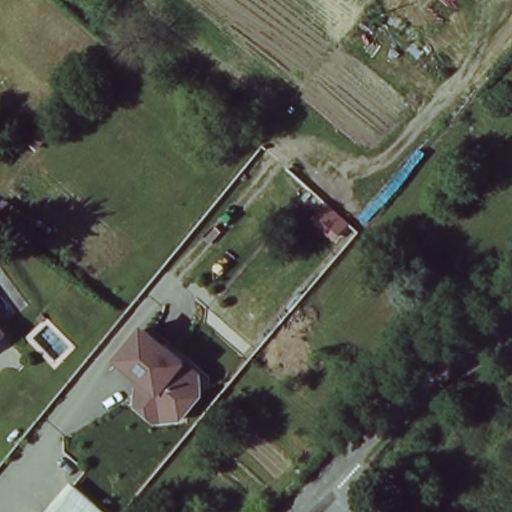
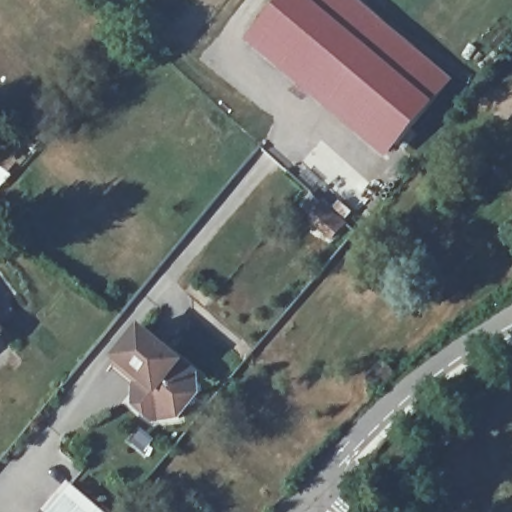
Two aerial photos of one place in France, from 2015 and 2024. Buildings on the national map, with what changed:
new [(312,0),(362,41),(381,23),(452,84),(387,160),(247,42),(282,0),(312,0)]
new [(326,205),(346,223),(333,237),(312,219),(326,205)]
unchanged [(141,387),(147,379),(122,358),(146,329),(199,372),(200,380),(188,394),(183,395),(186,418),(158,421),(151,416),(141,407),(141,387)]
unchanged [(2,336),(0,337),(0,334),(2,336)]
unchanged [(77,494),(99,512),(61,512),(77,494)]
unchanged [(41,511),(41,512),(40,512),(41,511)]

